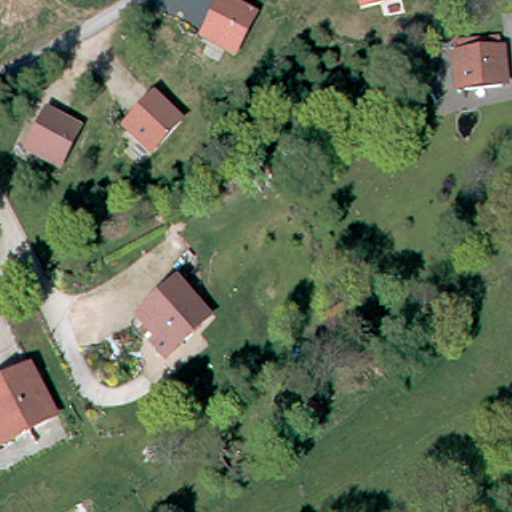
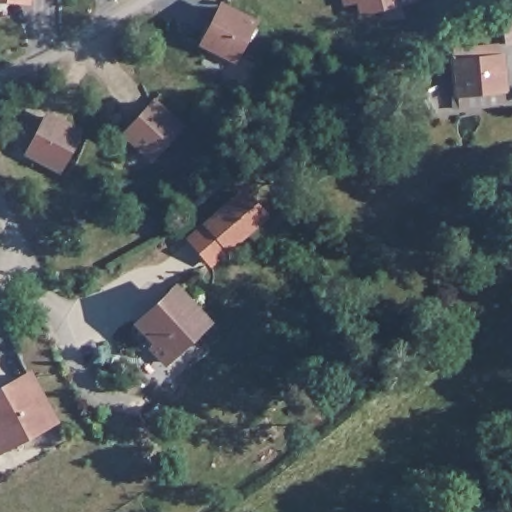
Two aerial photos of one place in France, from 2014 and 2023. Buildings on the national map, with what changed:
new [(0,5),(0,0),(32,0),(32,7),(0,5)]
unchanged [(342,0),(412,0),(359,14),(356,2),(343,3),(342,0)]
unchanged [(259,20),(242,62),(202,47),(219,5),(259,20)]
unchanged [(456,65),(501,61),(504,91),(460,94),(456,65)]
unchanged [(189,127),(158,165),(121,134),(152,99),(189,127)]
unchanged [(35,147),(51,112),(82,127),(67,163),(35,147)]
new [(269,219),(212,269),(184,235),(241,192),(269,219)]
unchanged [(214,314),(171,356),(143,327),(149,321),(145,317),(164,298),(179,282),(214,314)]
unchanged [(7,447),(0,435),(0,390),(11,383),(31,371),(59,415),(7,447)]

